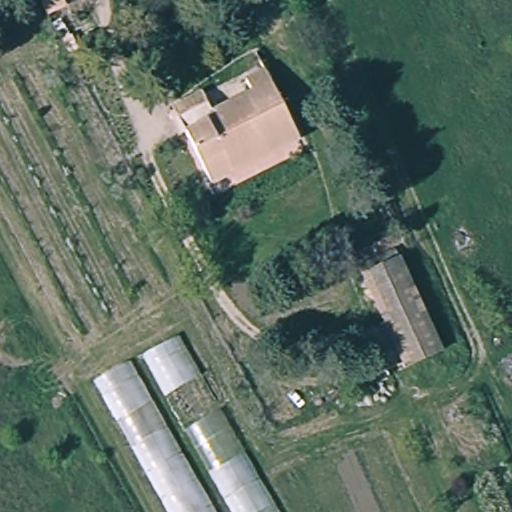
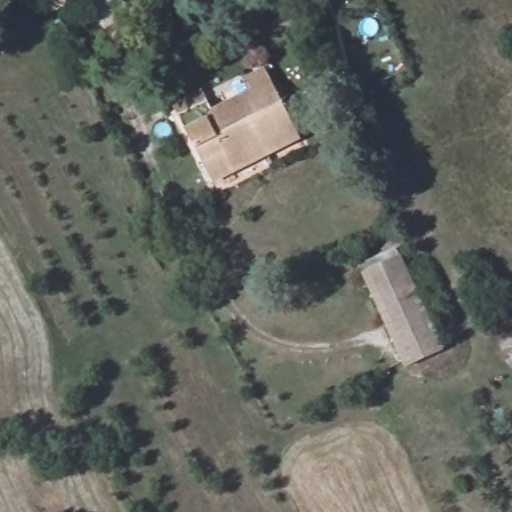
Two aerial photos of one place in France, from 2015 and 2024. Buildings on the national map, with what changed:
unchanged [(298,134),(211,181),(186,131),(208,118),(212,108),(250,86),(248,78),(264,68),(298,134)]
unchanged [(404,366),(360,272),(400,256),(445,351),(404,366)]
demolished [(183,325),(289,512),(179,512),(99,372),(183,325)]

